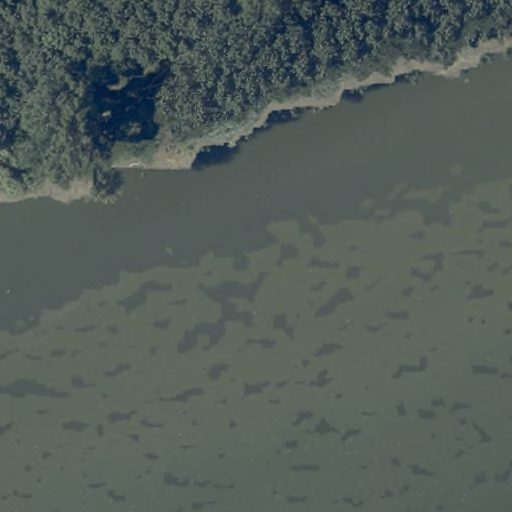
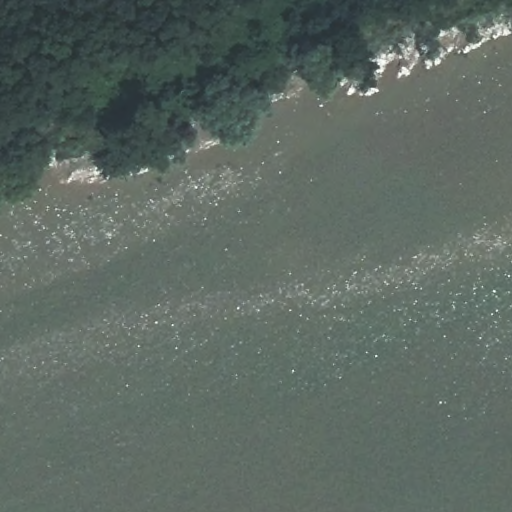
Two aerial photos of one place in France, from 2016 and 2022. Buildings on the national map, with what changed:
[]

